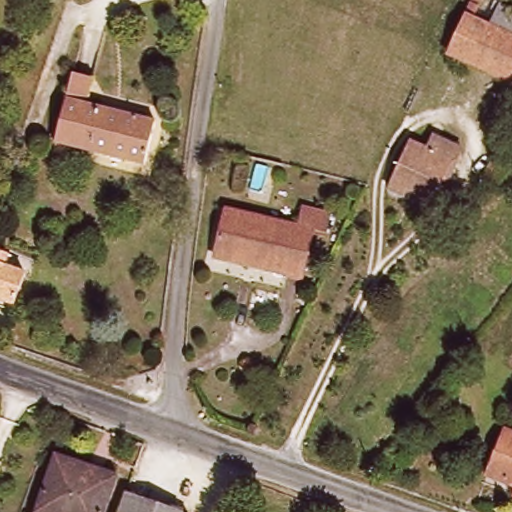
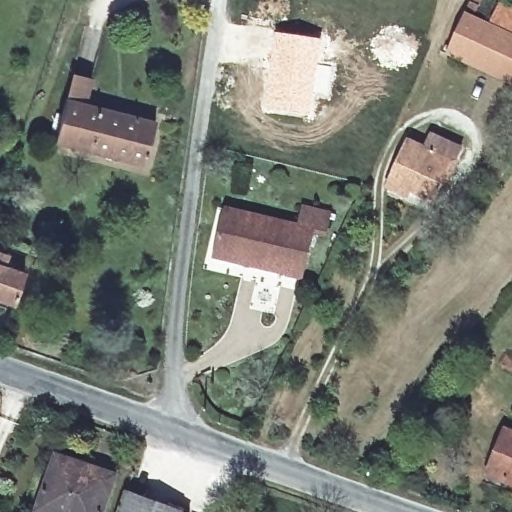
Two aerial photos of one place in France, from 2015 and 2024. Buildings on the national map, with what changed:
unchanged [(448,50),(463,15),(486,25),(498,2),(512,9),(512,80),(448,50)]
new [(275,32),(321,38),(318,63),(333,65),(329,96),(314,95),(311,117),(263,111),(275,32)]
unchanged [(74,64),(106,73),(98,104),(64,94),(74,64)]
unchanged [(52,138),(64,94),(98,104),(153,122),(139,166),(52,138)]
unchanged [(449,160),(431,202),(408,193),(406,197),(387,189),(407,141),(449,160)]
unchanged [(304,205),(331,213),(325,235),(313,231),(299,278),(211,251),(225,205),(298,226),(304,205)]
unchanged [(4,288),(0,298),(0,258),(29,270),(19,294),(4,288)]
unchanged [(485,470),(505,425),(512,427),(512,483),(485,470)]
unchanged [(105,512),(36,512),(56,452),(119,472),(105,512)]
unchanged [(195,509),(194,512),(120,512),(129,486),(195,509)]

